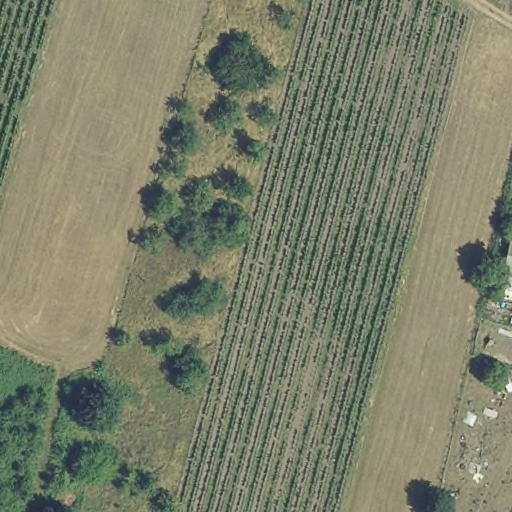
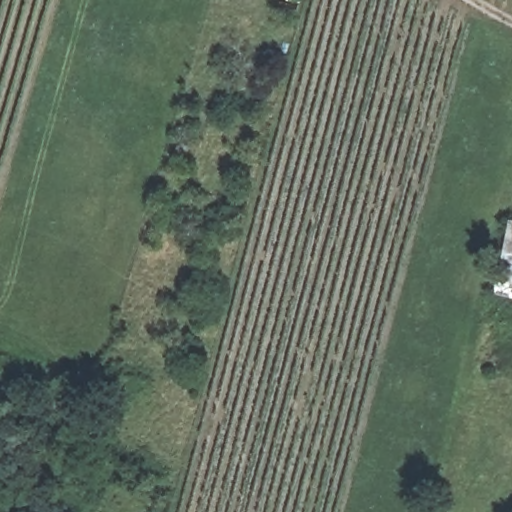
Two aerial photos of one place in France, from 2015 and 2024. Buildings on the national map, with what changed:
unchanged [(493,267),(512,206),(512,272),(493,267)]

